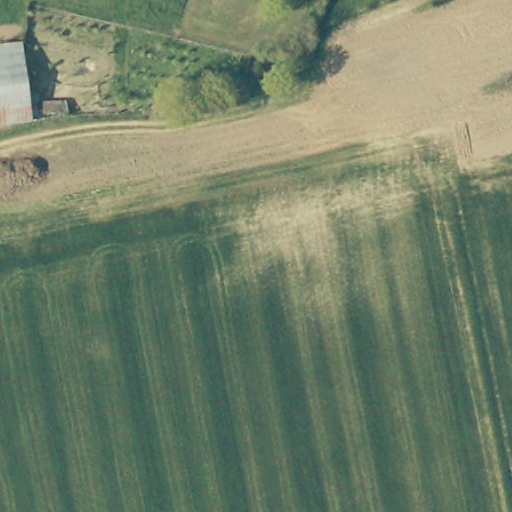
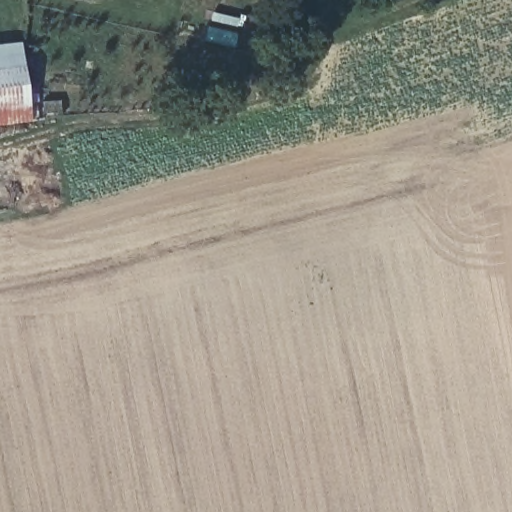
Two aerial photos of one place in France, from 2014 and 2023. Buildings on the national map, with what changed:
unchanged [(0,65),(0,44),(20,42),(22,63),(0,65)]
unchanged [(30,118),(0,122),(0,65),(22,63),(30,118)]

